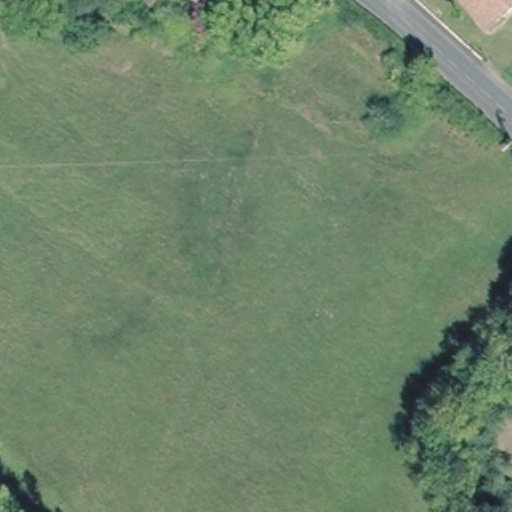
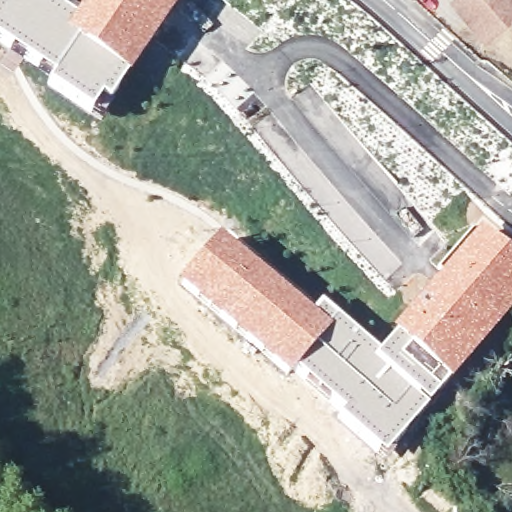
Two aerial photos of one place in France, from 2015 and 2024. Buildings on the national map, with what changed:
new [(181,0),(126,80),(109,105),(100,100),(91,114),(47,86),(52,79),(0,45),(0,2),(1,0),(43,0),(75,21),(89,0),(181,0)]
unchanged [(454,0),(512,0),(512,2),(478,30),(454,0)]
new [(218,235),(311,313),(320,303),(378,351),(391,335),(390,334),(480,228),(512,254),(512,312),(456,375),(437,395),(383,458),(337,417),(341,412),(294,375),(290,380),(225,327),(176,285),(218,235)]

